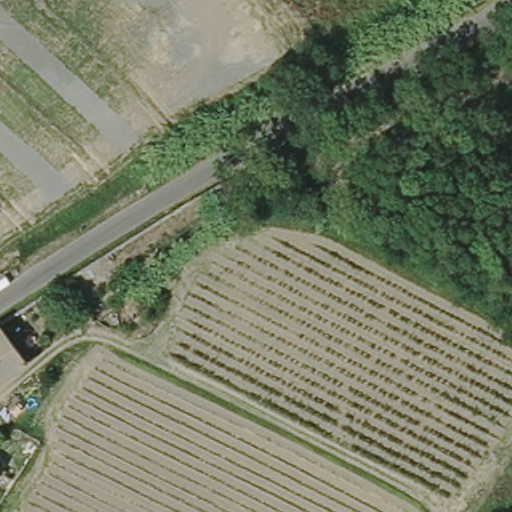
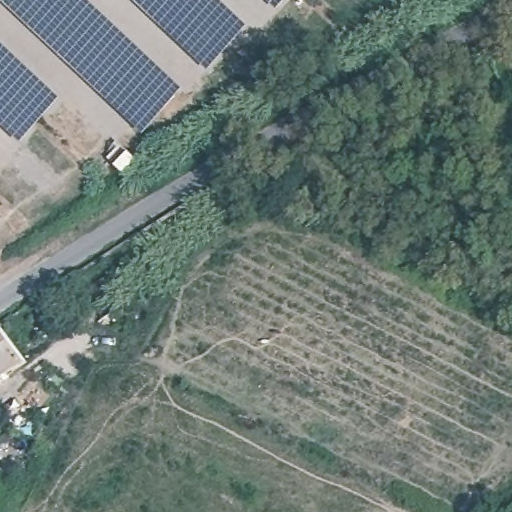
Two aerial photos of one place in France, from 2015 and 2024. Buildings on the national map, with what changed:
new [(144,134),(2,0),(89,0),(185,90),(144,134)]
new [(210,70),(136,0),(222,0),(251,27),(210,70)]
new [(270,0),(288,0),(280,9),(270,0)]
new [(23,143),(0,122),(0,41),(63,100),(23,143)]
new [(0,167),(0,165),(1,165),(0,167)]
unchanged [(0,379),(0,323),(3,320),(30,359),(0,379)]

